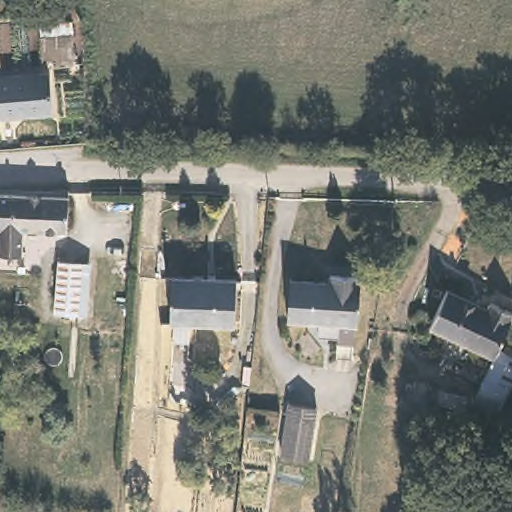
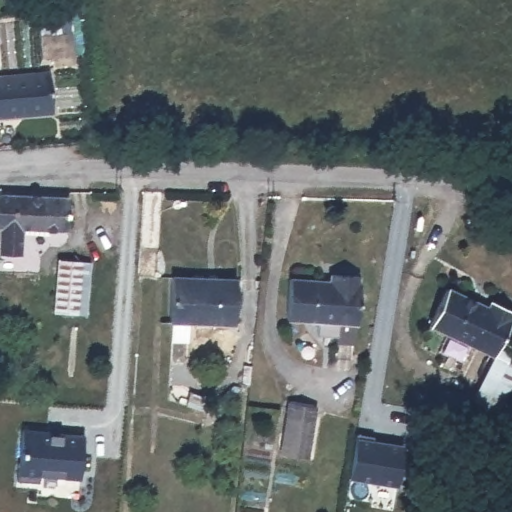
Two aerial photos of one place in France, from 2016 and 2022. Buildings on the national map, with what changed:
unchanged [(48,70),(51,114),(0,118),(0,73),(48,70)]
unchanged [(66,192),(64,226),(21,224),(19,251),(0,250),(0,189),(66,192)]
unchanged [(83,312),(63,312),(63,301),(64,262),(85,262),(83,312)]
unchanged [(318,322),(284,321),(286,279),(326,281),(326,274),(356,275),(356,282),(359,282),(358,323),(354,323),(353,344),(338,343),(338,336),(318,335),(318,322)]
unchanged [(231,277),(229,325),(165,323),(167,275),(231,277)]
unchanged [(512,314),(512,319),(501,348),(512,352),(512,386),(500,412),(474,401),(490,358),(430,326),(447,290),(512,314)]
unchanged [(316,405),(309,457),(281,453),(289,401),(316,405)]
new [(21,432),(85,435),(82,480),(64,479),(64,477),(40,476),(38,483),(18,481),(21,432)]
new [(356,434),(376,436),(375,440),(409,445),(404,487),(350,481),(356,434)]

